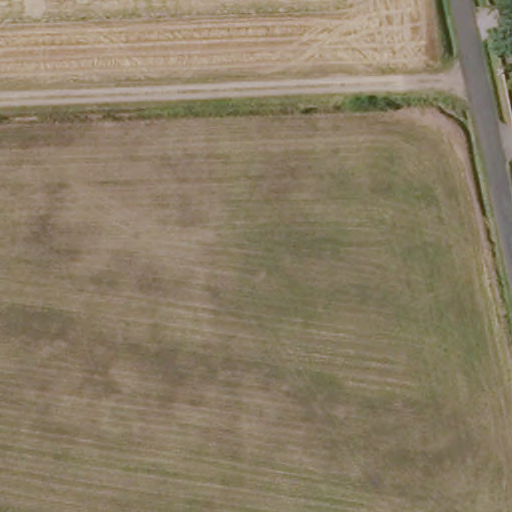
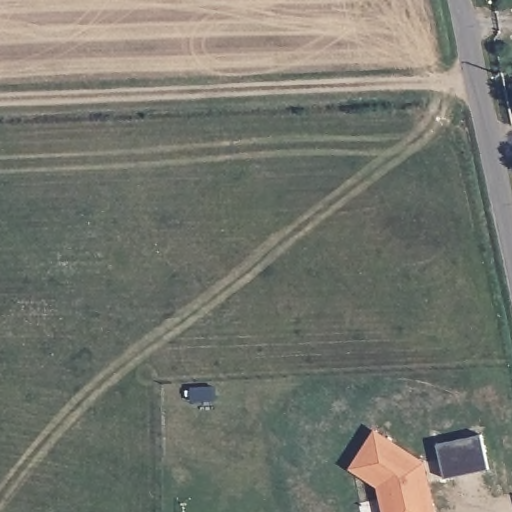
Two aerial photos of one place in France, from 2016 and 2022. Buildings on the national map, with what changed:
new [(351,469),(376,430),(426,462),(436,512),(383,512),(378,487),(351,469)]
new [(446,477),(439,443),(483,435),(490,467),(446,477)]

